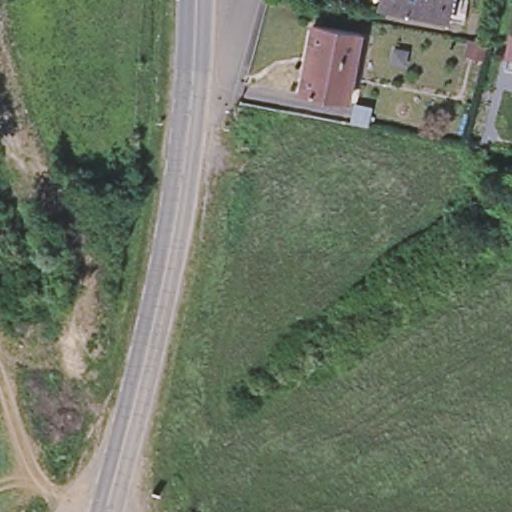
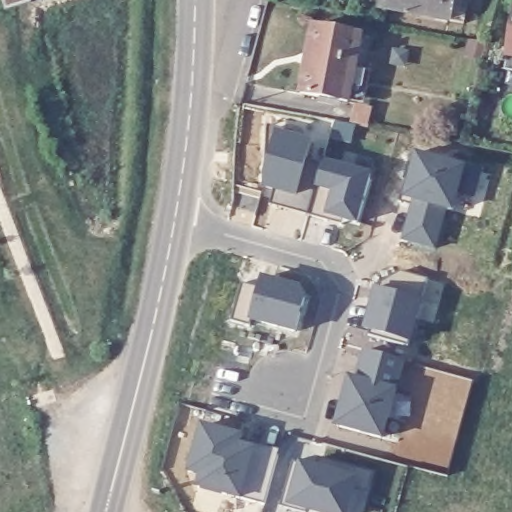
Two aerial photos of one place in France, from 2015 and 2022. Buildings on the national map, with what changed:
unchanged [(459,0),(456,15),(380,0),(459,0)]
unchanged [(295,87),(308,19),(355,28),(342,96),(295,87)]
unchanged [(510,55),(512,40),(512,55),(510,55)]
new [(265,185),(267,129),(313,142),(308,157),(324,162),(310,215),(278,206),(272,204),(277,189),(265,185)]
new [(465,163),(454,210),(447,208),(437,249),(402,239),(413,197),(403,194),(415,150),(465,163)]
new [(342,169),(342,166),(355,170),(372,175),(372,177),(359,222),(330,214),(328,220),(310,215),(323,164),(342,169)]
new [(343,224),(328,220),(330,214),(345,217),(343,224)]
new [(409,346),(369,334),(377,306),(370,329),(365,328),(372,305),(377,288),(379,289),(381,282),(402,271),(429,278),(418,317),(412,341),(410,341),(417,317),(409,346)]
new [(260,286),(263,276),(277,280),(290,283),(287,292),(305,297),(295,330),(252,317),(250,323),(232,318),(242,281),(260,286)]
new [(403,358),(383,436),(334,423),(347,373),(355,375),(363,348),(403,358)]
new [(242,432),(239,442),(270,449),(277,452),(265,502),(196,482),(198,471),(187,468),(200,422),(242,432)]
new [(320,467),(316,467),(318,456),(323,457),(320,467)]
new [(348,512),(322,512),(307,508),(307,512),(280,505),(293,460),(320,467),(323,457),(360,467),(348,512)]
new [(354,489),(360,467),(375,472),(368,493),(354,489)]

